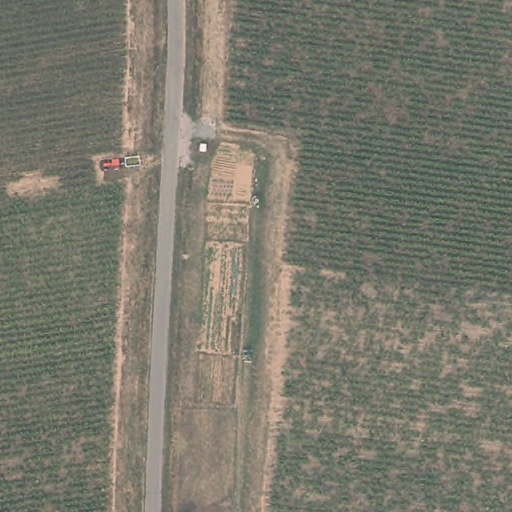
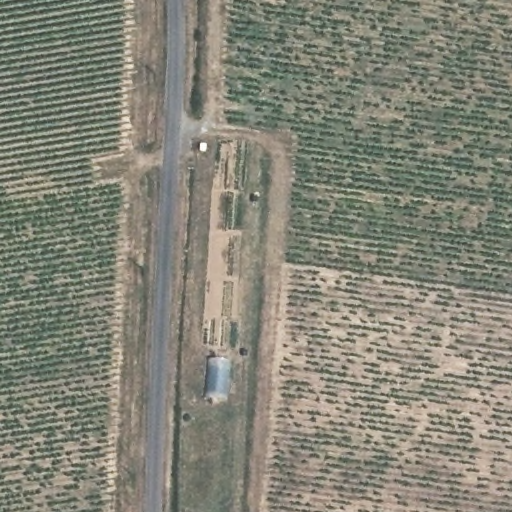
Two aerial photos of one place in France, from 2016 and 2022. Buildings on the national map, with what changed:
unchanged [(151,184),(150,202),(132,204),(132,185),(151,184)]

